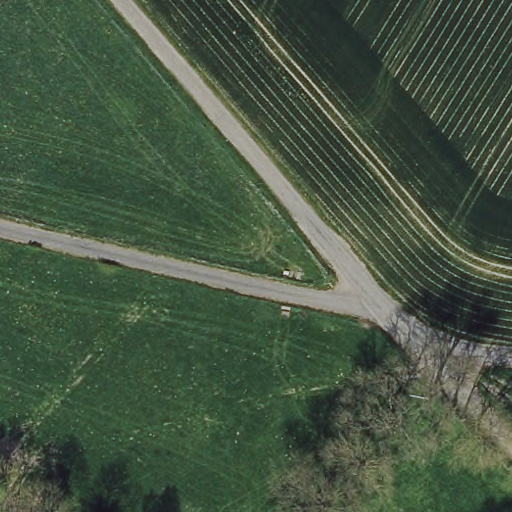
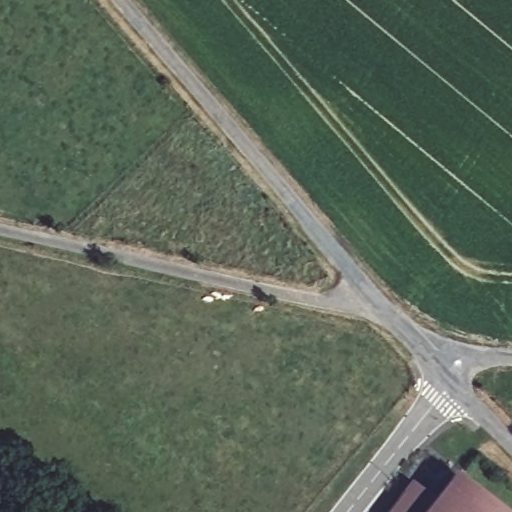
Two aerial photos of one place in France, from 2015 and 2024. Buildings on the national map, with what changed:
new [(500,512),(390,512),(413,483),(437,501),(457,477),(500,512)]

